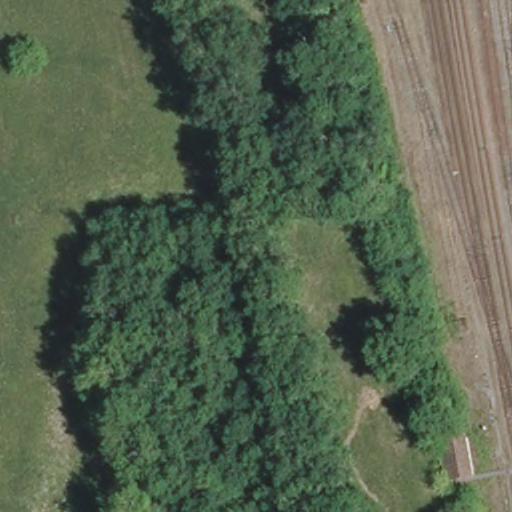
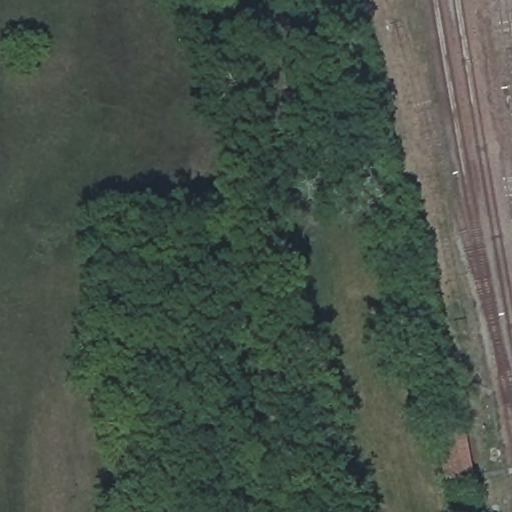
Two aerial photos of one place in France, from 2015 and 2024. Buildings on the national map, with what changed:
unchanged [(449,479),(440,434),(472,428),(480,474),(449,479)]

